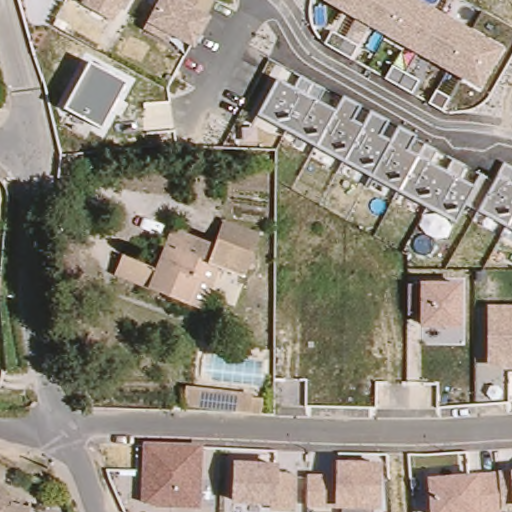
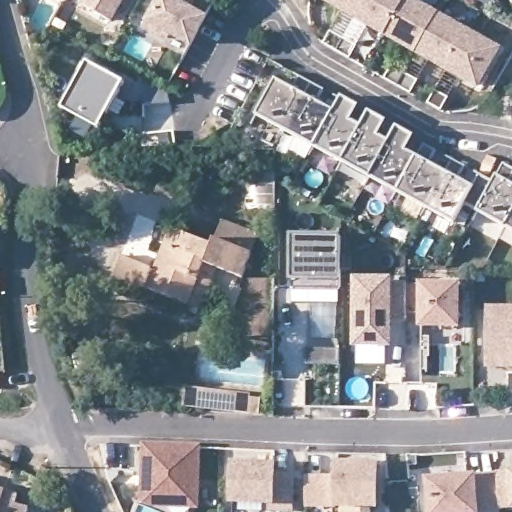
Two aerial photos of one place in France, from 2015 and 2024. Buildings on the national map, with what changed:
unchanged [(114,21),(84,4),(85,0),(125,0),(114,21)]
unchanged [(195,47),(174,36),(168,46),(143,33),(160,0),(217,0),(195,47)]
unchanged [(505,45),(482,90),(321,3),(322,0),(421,0),(505,45)]
unchanged [(127,82),(101,131),(63,109),(90,60),(127,82)]
unchanged [(293,87),(301,76),(326,89),(319,101),(335,112),(344,96),(361,105),(352,121),(364,126),(371,111),(389,121),(380,136),(390,141),(397,127),(417,136),(408,151),(418,157),(425,145),(437,152),(430,162),(445,171),(453,157),(467,166),(460,178),(474,185),(480,173),(493,180),(504,162),(512,167),(512,179),(510,181),(512,183),(512,231),(465,205),(456,222),(257,114),(277,79),(293,87)]
unchanged [(193,309),(115,279),(124,258),(158,271),(174,230),(216,246),(219,240),(228,219),(264,234),(256,255),(246,280),(222,270),(205,313),(193,309)]
new [(293,236),(342,237),(341,289),(293,288),(293,236)]
new [(395,275),(394,348),(392,348),(388,348),(354,347),(352,347),(351,274),(395,275)]
unchanged [(462,329),(419,329),(419,315),(408,314),(408,282),(462,281),(462,329)]
unchanged [(512,303),(512,370),(489,370),(487,303),(512,303)]
new [(307,349),(340,349),(340,365),(307,364),(307,349)]
unchanged [(251,398),(250,402),(259,403),(257,418),(181,410),(184,391),(251,398)]
unchanged [(203,443),(199,509),(159,507),(140,500),(143,441),(203,443)]
unchanged [(276,460),(276,473),(295,473),(295,511),(270,510),(270,503),(230,503),(232,460),(276,460)]
unchanged [(334,461),(381,460),(381,508),(373,508),(373,512),(341,512),(341,508),(307,507),(306,472),(334,472),(334,461)]
unchanged [(503,508),(503,512),(428,512),(426,477),(512,470),(512,507),(503,508)]
unchanged [(6,502),(33,507),(32,512),(0,512),(0,489),(8,491),(6,502)]

